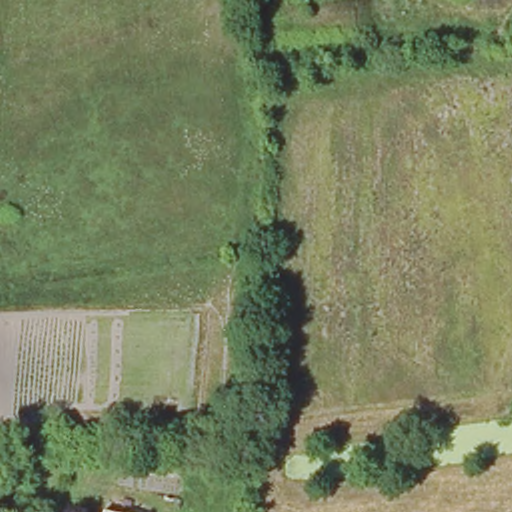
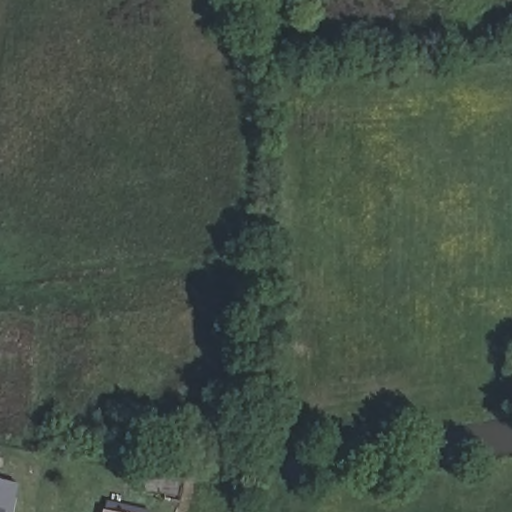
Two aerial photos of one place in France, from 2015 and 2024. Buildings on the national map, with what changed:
new [(21,483),(15,512),(0,512),(0,479),(21,483)]

